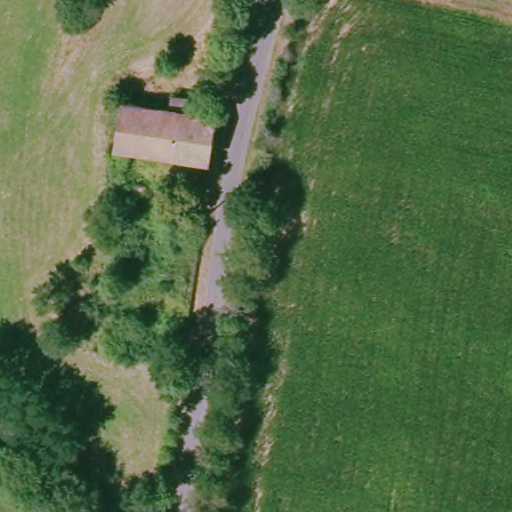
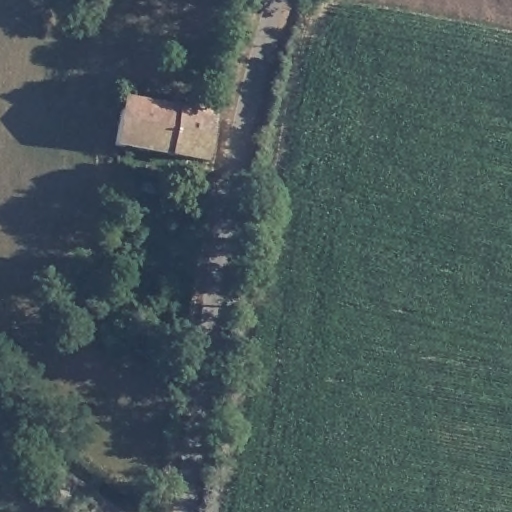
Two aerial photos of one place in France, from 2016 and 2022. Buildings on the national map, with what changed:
unchanged [(111,146),(120,100),(167,108),(169,94),(188,96),(186,111),(208,116),(201,162),(111,146)]

